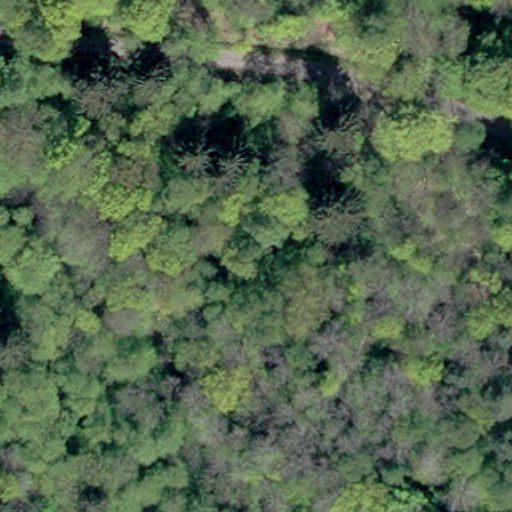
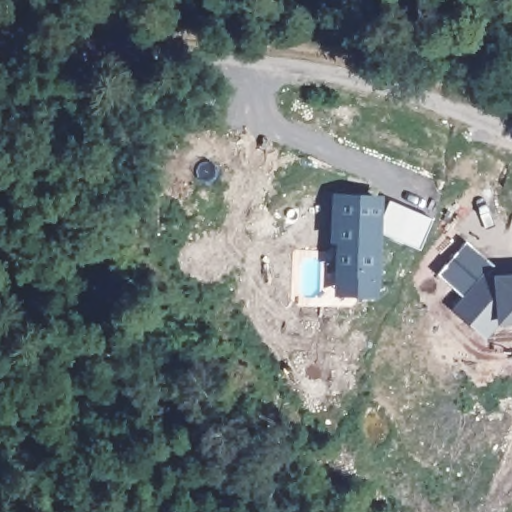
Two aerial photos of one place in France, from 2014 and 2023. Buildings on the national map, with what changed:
new [(342,225),(335,225),(337,198),(380,200),(380,219),(382,220),(390,200),(434,219),(421,250),(379,232),(377,273),(376,293),(338,291),(340,271),(342,225)]
new [(495,265),(487,275),(490,279),(512,278),(512,321),(497,322),(485,335),(456,310),(465,299),(437,274),(467,241),(495,265)]

